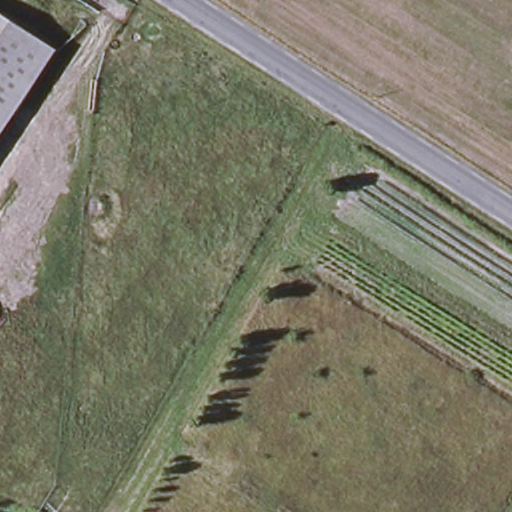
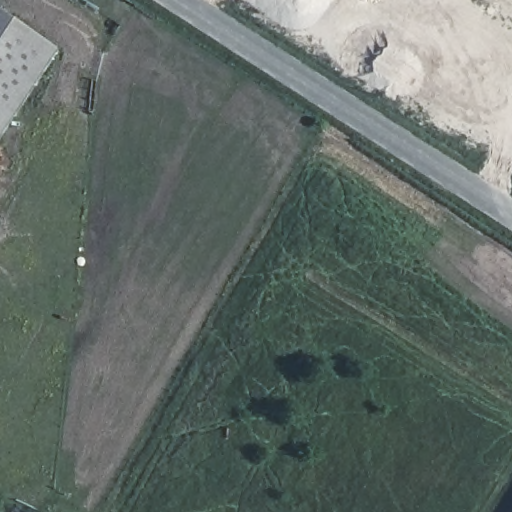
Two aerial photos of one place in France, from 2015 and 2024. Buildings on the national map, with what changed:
unchanged [(0,140),(0,19),(54,53),(0,140)]

